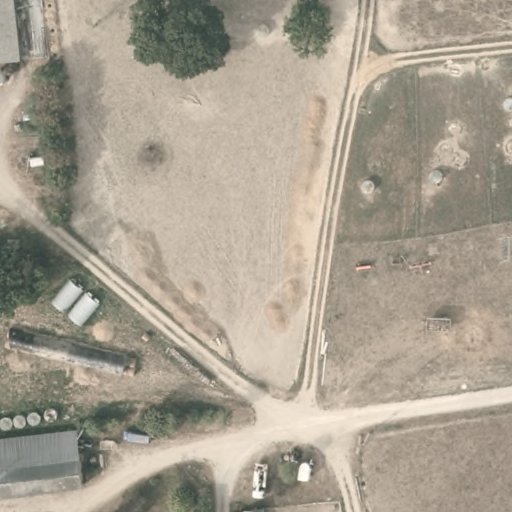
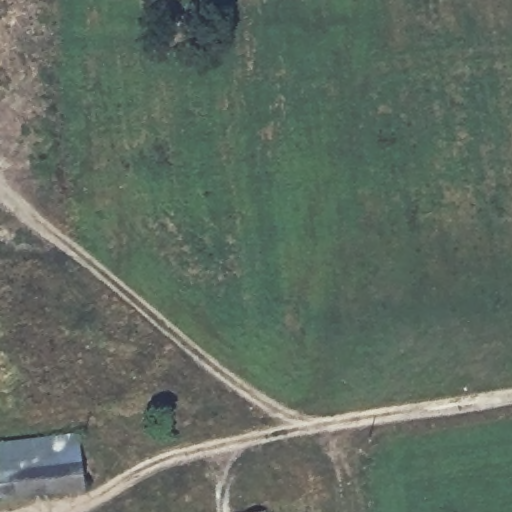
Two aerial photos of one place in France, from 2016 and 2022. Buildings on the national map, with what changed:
demolished [(17,0),(22,54),(0,56),(0,0),(17,0)]
unchanged [(81,434),(81,453),(0,461),(0,442),(81,434)]
unchanged [(81,453),(81,486),(0,493),(0,461),(81,453)]
unchanged [(247,501),(265,498),(268,512),(248,512),(247,501)]

